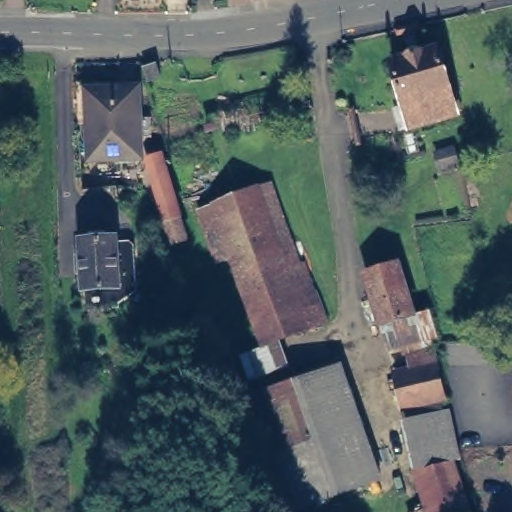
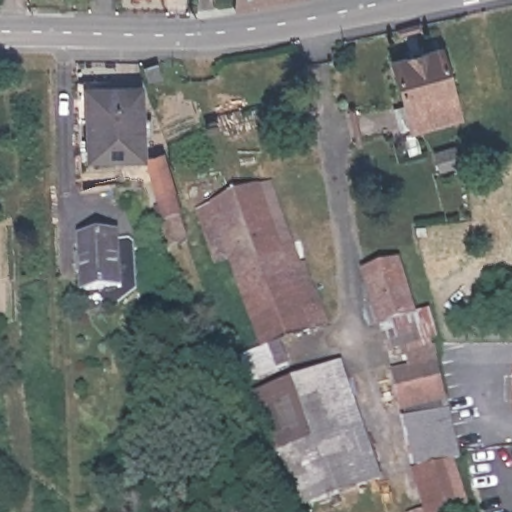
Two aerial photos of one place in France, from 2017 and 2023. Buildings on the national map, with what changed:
unchanged [(396,100),(406,98),(393,53),(440,41),(460,108),(412,121),(402,124),(396,100)]
unchanged [(160,78),(149,83),(144,69),(156,66),(160,78)]
unchanged [(151,132),(140,133),(141,153),(91,156),(90,101),(88,87),(96,87),(138,86),(140,115),(150,115),(151,132)]
unchanged [(172,240),(165,214),(148,156),(163,151),(180,209),(187,236),(172,240)]
unchanged [(272,181),(301,262),(307,260),(330,322),(265,344),(231,255),(216,260),(197,206),(272,181)]
unchanged [(77,291),(76,275),(69,276),(68,259),(75,259),(74,241),(106,240),(107,252),(125,251),(126,288),(110,305),(110,289),(77,291)]
unchanged [(475,512),(404,512),(404,511),(423,506),(359,272),(402,257),(420,313),(432,310),(475,512)]
unchanged [(250,396),(343,364),(381,475),(296,505),(290,508),(285,494),(250,396)]

